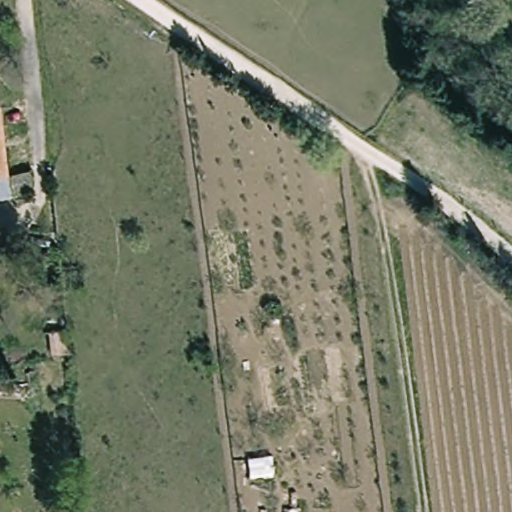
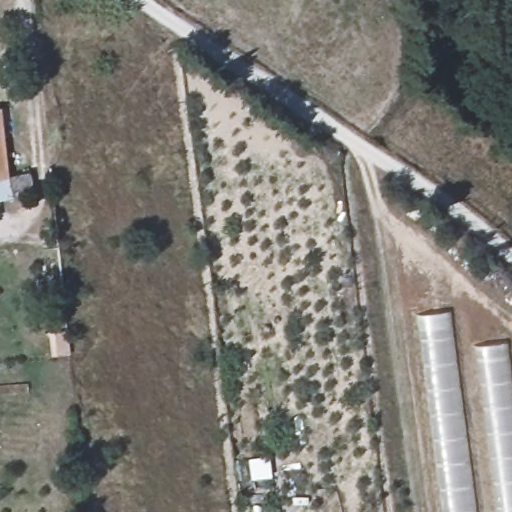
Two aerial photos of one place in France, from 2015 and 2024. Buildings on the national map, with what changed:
unchanged [(0,110),(6,182),(0,183),(0,110)]
new [(450,311),(477,512),(442,512),(415,315),(450,311)]
new [(512,380),(512,512),(495,512),(474,346),(507,342),(512,380)]

